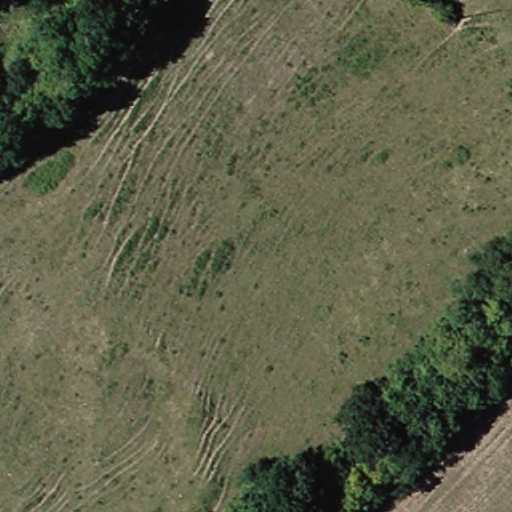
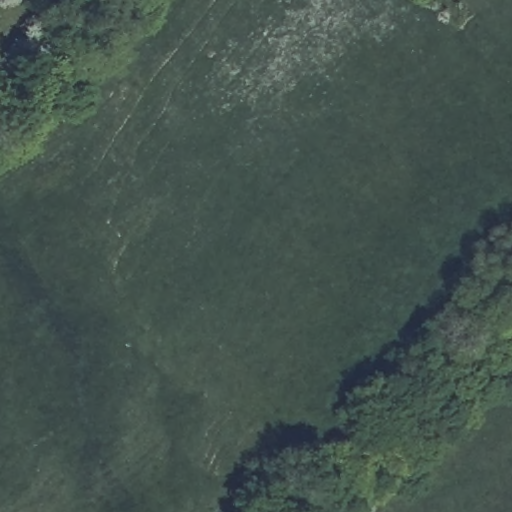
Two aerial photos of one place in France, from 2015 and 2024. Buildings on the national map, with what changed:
[]

